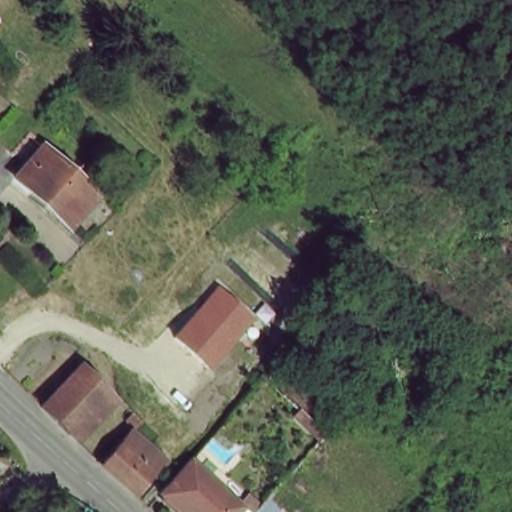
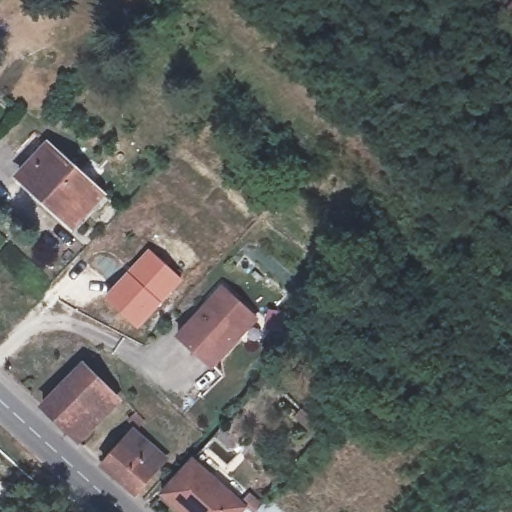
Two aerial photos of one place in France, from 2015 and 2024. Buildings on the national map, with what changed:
unchanged [(74,226),(19,176),(49,144),(104,194),(74,226)]
new [(104,298),(149,250),(182,280),(137,330),(104,298)]
unchanged [(222,285),(258,318),(212,370),(176,337),(222,285)]
unchanged [(54,420),(47,413),(90,371),(118,400),(77,441),(54,420)]
unchanged [(104,470),(133,437),(166,466),(137,500),(104,470)]
unchanged [(193,465),(245,512),(176,512),(163,500),(179,481),(193,465)]
unchanged [(282,512),(264,512),(271,503),(282,512)]

